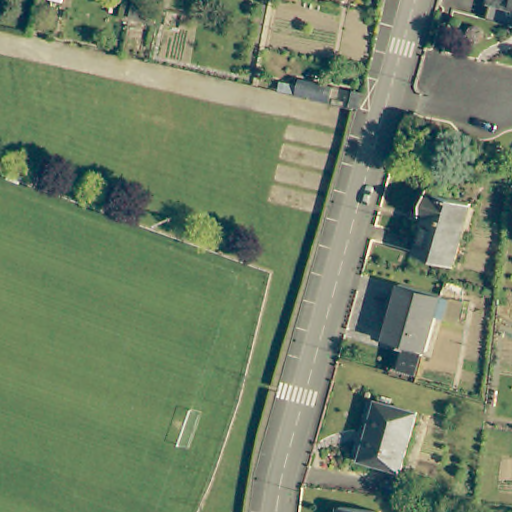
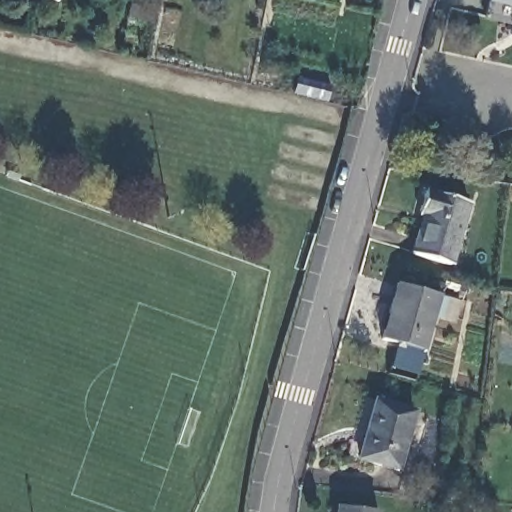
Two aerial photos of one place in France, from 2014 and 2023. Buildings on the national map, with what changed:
unchanged [(512,11),(495,6),(497,0),(512,0),(512,11)]
unchanged [(329,86),(326,102),(295,94),(298,78),(329,86)]
unchanged [(428,214),(422,212),(430,188),(473,201),(455,263),(417,252),(428,214)]
unchanged [(423,356),(384,343),(402,289),(441,302),(423,356)]
unchanged [(399,473),(360,462),(376,403),(415,414),(399,473)]
unchanged [(342,512),(343,499),(384,505),(383,512),(342,512)]

